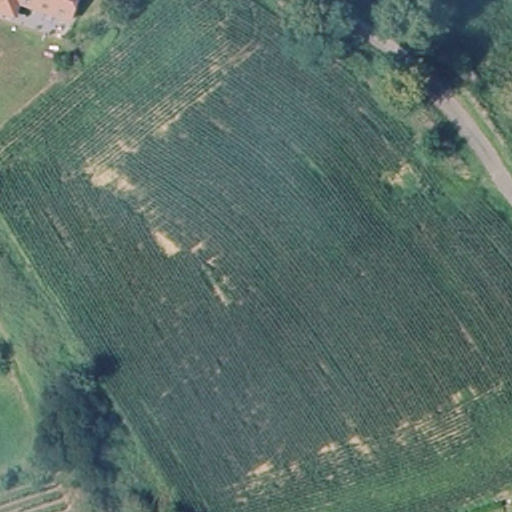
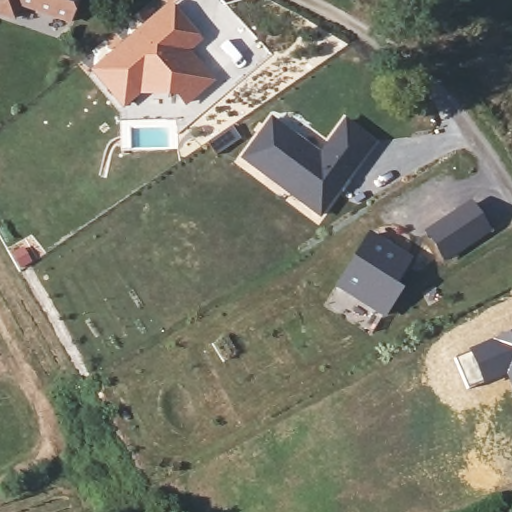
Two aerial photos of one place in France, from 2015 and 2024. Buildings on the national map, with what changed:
unchanged [(72,24),(22,7),(17,21),(0,15),(0,0),(78,0),(72,24)]
new [(186,105),(178,96),(137,92),(124,105),(98,75),(114,63),(110,59),(170,7),(197,40),(177,57),(184,65),(200,66),(212,81),(186,105)]
new [(245,162),(273,124),(302,145),(322,160),(346,127),(374,147),(321,219),(308,210),(267,179),(245,162)]
new [(493,204),(495,230),(435,233),(433,206),(493,204)]
new [(369,244),(407,268),(390,298),(395,301),(383,322),(338,295),(369,244)]
new [(508,333),(512,332),(512,393),(505,377),(467,390),(453,360),(508,333)]

